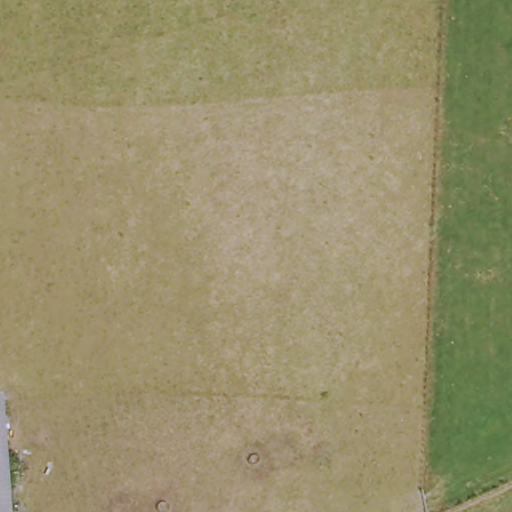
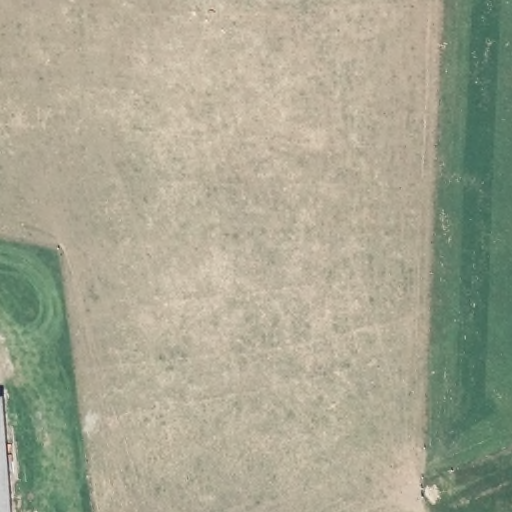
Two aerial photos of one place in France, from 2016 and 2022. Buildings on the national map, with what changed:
unchanged [(0,512),(0,400),(7,399),(17,512),(0,512)]

